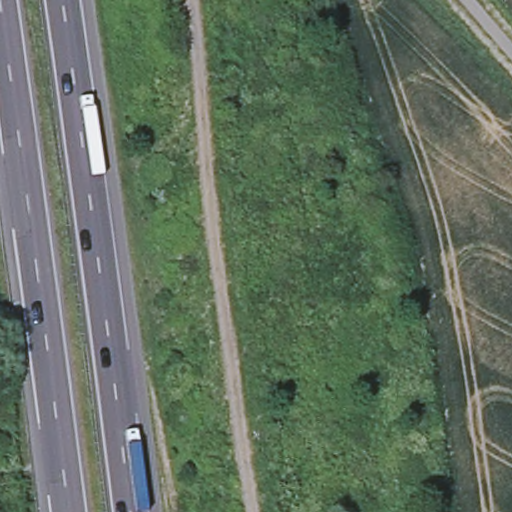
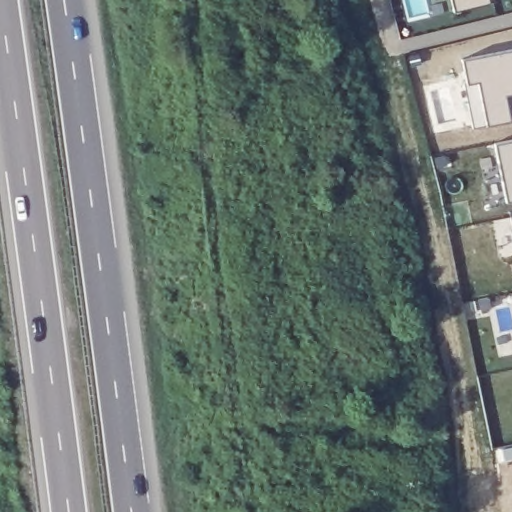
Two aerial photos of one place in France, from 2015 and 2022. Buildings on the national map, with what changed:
new [(446,0),(481,0),(448,11),(446,0)]
new [(512,51),(512,126),(509,127),(507,122),(474,127),(463,61),(512,51)]
new [(512,139),(512,202),(506,203),(496,142),(512,139)]
new [(512,218),(512,220),(511,218),(512,218)]

